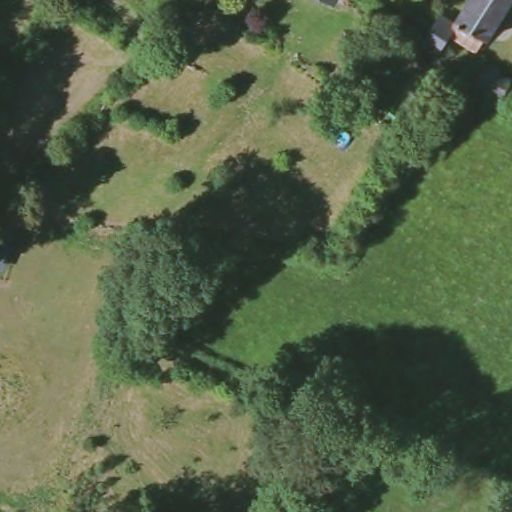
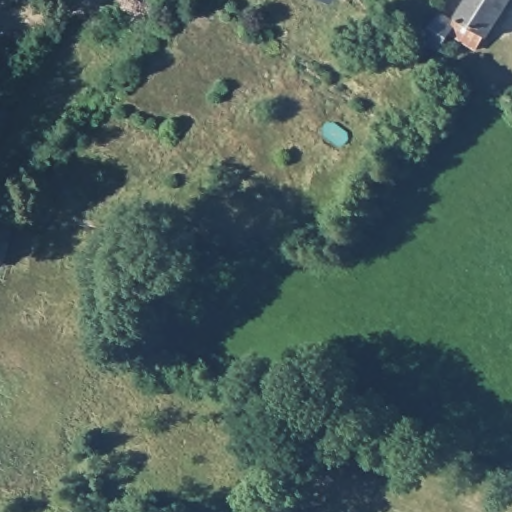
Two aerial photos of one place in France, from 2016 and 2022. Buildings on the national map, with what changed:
unchanged [(413,45),(434,13),(448,23),(463,0),(507,0),(486,32),(478,27),(472,38),(452,26),(429,57),(413,45)]
unchanged [(508,82),(498,98),(472,82),(482,66),(508,82)]
unchanged [(509,101),(512,94),(512,103),(509,101)]
unchanged [(8,259),(0,258),(0,216),(18,220),(8,259)]

